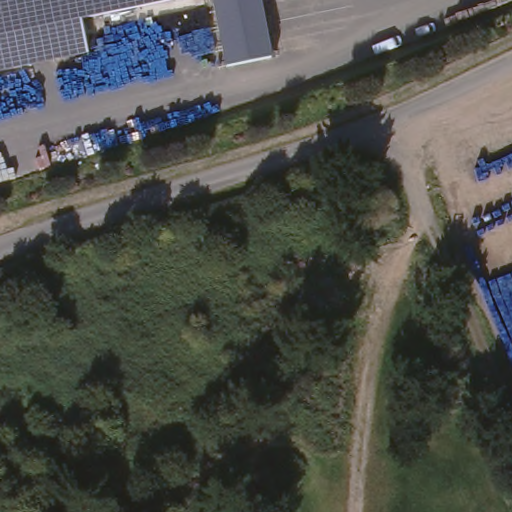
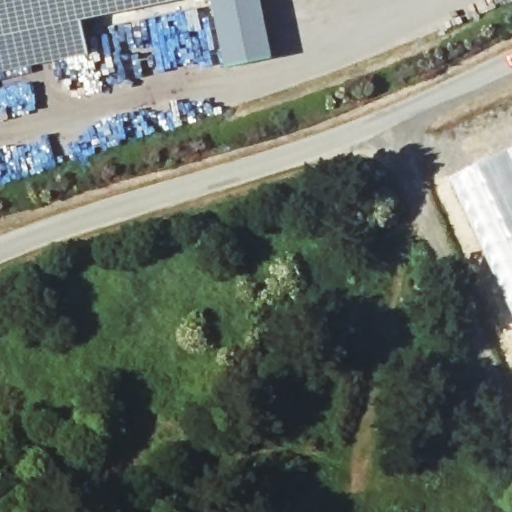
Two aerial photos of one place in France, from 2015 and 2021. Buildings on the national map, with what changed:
unchanged [(0,38),(0,0),(192,0),(0,38)]
unchanged [(269,57),(225,69),(208,0),(256,0),(269,57)]
new [(454,177),(512,150),(512,304),(454,177)]

